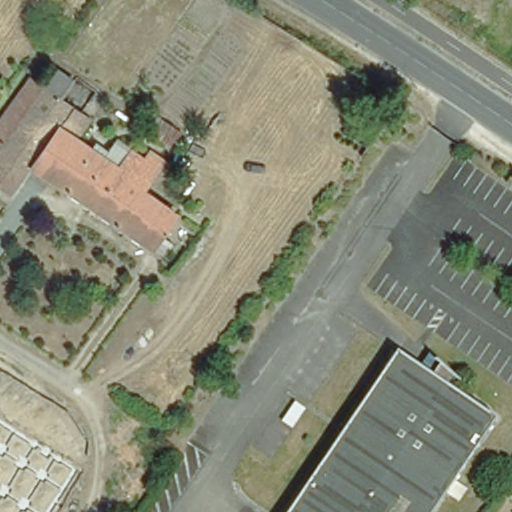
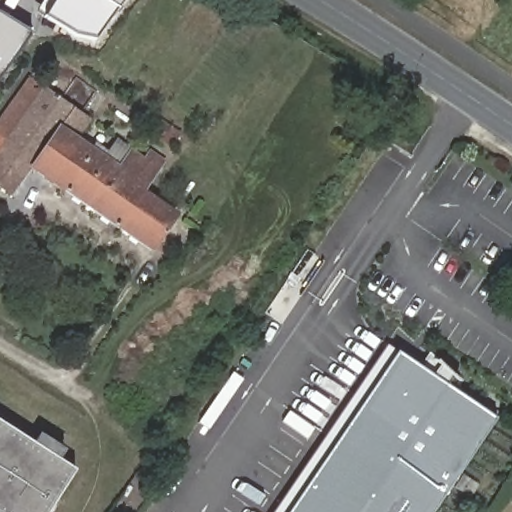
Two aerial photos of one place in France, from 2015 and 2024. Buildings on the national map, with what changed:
new [(116,8),(95,38),(76,36),(45,16),(36,11),(42,0),(122,0),(116,8)]
new [(0,79),(0,13),(33,33),(0,79)]
unchanged [(89,127),(76,144),(107,165),(119,149),(130,157),(131,156),(145,165),(151,157),(165,167),(144,196),(178,220),(153,255),(30,173),(12,198),(0,190),(0,127),(43,68),(72,88),(60,107),(89,127)]
unchanged [(430,376),(439,363),(455,379),(448,389),(458,395),(501,424),(440,512),(294,512),(399,356),(430,376)]
new [(50,512),(0,512),(0,421),(76,469),(50,512)]

